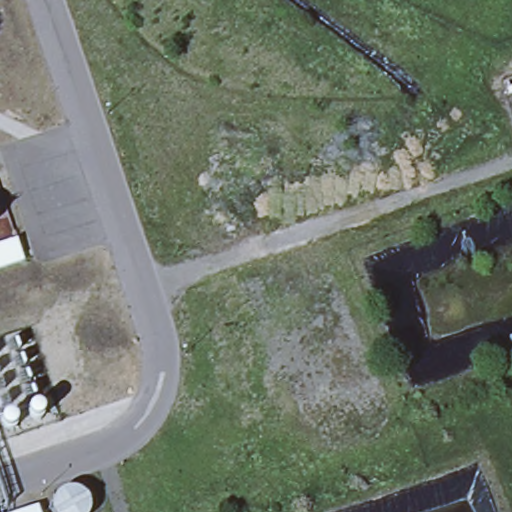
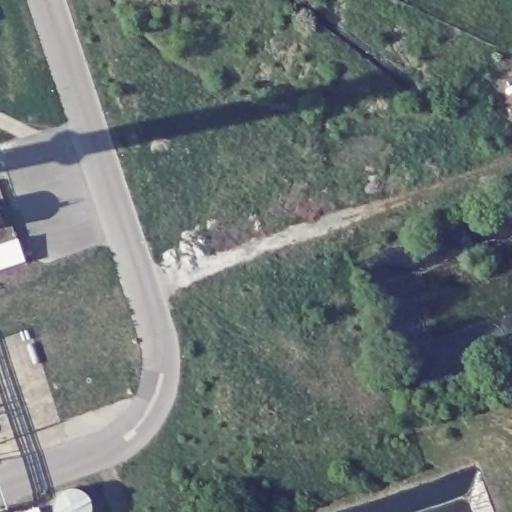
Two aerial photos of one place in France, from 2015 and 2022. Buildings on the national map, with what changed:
unchanged [(16,237),(23,258),(0,266),(0,242),(16,237)]
unchanged [(35,506),(37,512),(19,512),(35,506)]

